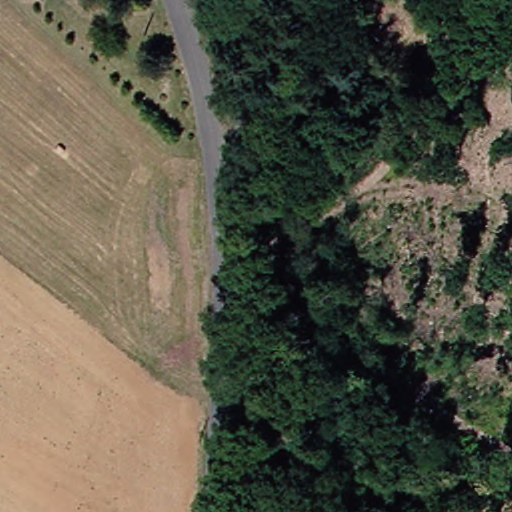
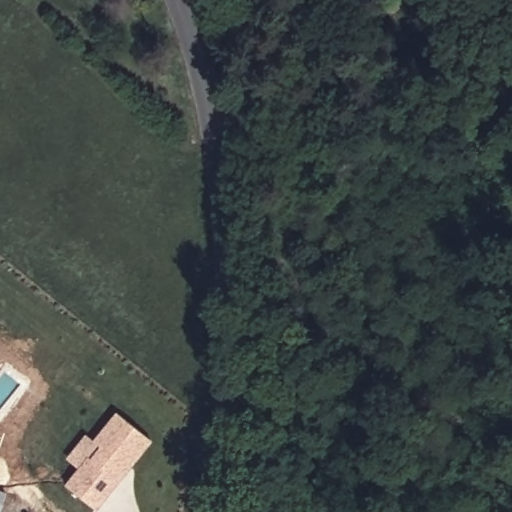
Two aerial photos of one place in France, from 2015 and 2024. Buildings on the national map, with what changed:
new [(68,458),(87,436),(93,442),(115,413),(150,440),(94,509),(64,485),(79,467),(68,458)]

